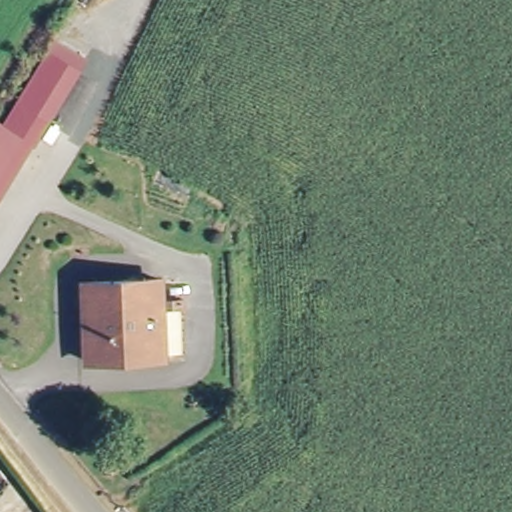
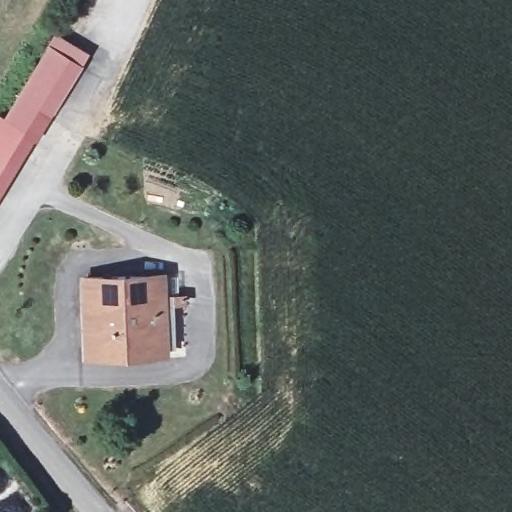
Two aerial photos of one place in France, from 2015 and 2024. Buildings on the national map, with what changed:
unchanged [(28,129),(7,116),(51,45),(59,35),(90,54),(84,64),(0,198),(0,172),(28,129)]
unchanged [(28,129),(0,172),(0,120),(4,114),(28,129)]
unchanged [(159,354),(87,355),(88,280),(160,278),(160,332),(159,354)]

